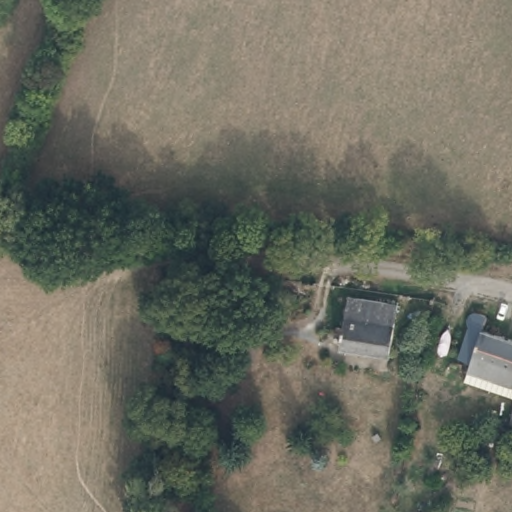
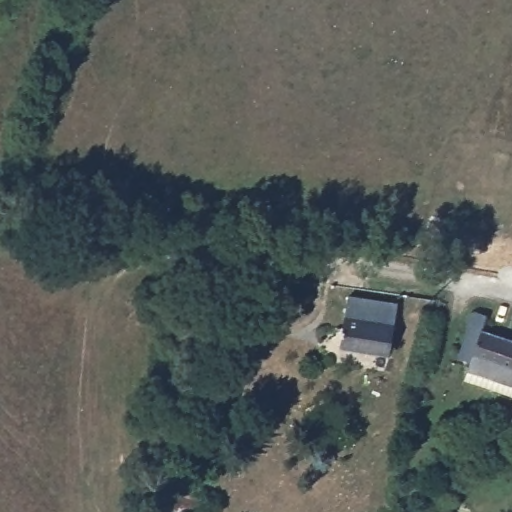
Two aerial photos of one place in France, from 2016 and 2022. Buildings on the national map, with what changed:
unchanged [(387,354),(342,345),(351,294),(397,302),(387,354)]
unchanged [(207,351),(178,347),(184,300),(213,304),(207,351)]
unchanged [(462,384),(469,350),(454,346),(456,303),(482,312),(479,331),(495,335),(484,389),(462,384)]
unchanged [(484,389),(495,335),(512,338),(512,396),(484,389)]

